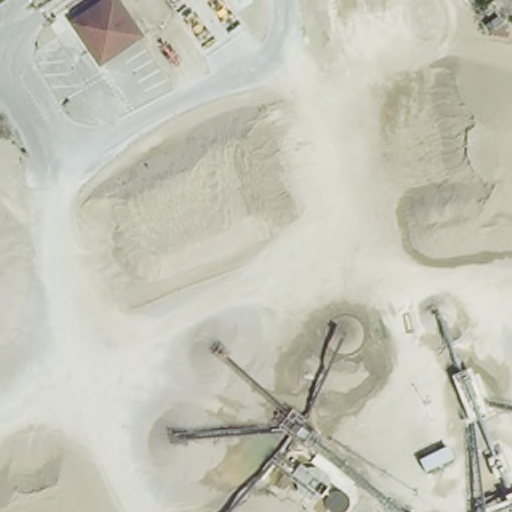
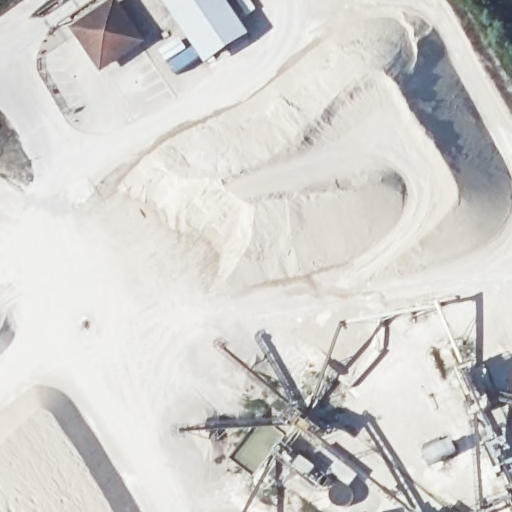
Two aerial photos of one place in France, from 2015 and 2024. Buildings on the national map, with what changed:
new [(205,58),(164,0),(225,0),(245,31),(205,58)]
unchanged [(142,41),(104,64),(91,41),(82,26),(88,23),(119,4),(142,41)]
unchanged [(359,474),(350,487),(353,494),(352,502),(348,506),(342,508),(337,507),(333,504),(331,501),(329,496),(329,492),(326,491),(320,493),(316,494),(312,493),(307,490),(302,487),(301,484),(301,479),(294,473),(303,458),(310,463),(313,461),(319,460),(314,456),(322,447),(359,474)]

